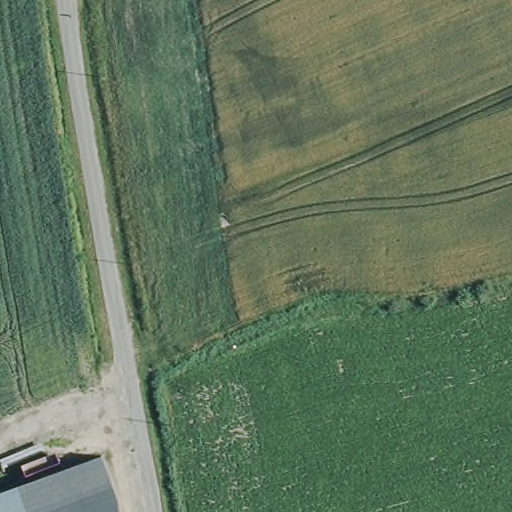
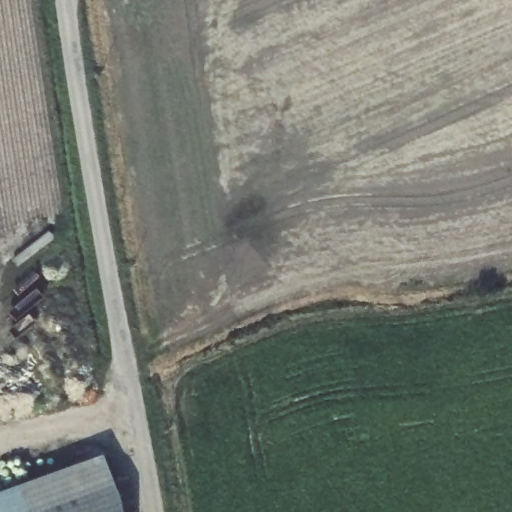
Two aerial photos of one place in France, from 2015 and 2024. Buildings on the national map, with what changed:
unchanged [(104,456),(120,496),(123,512),(0,512),(0,493),(102,452),(104,456)]

